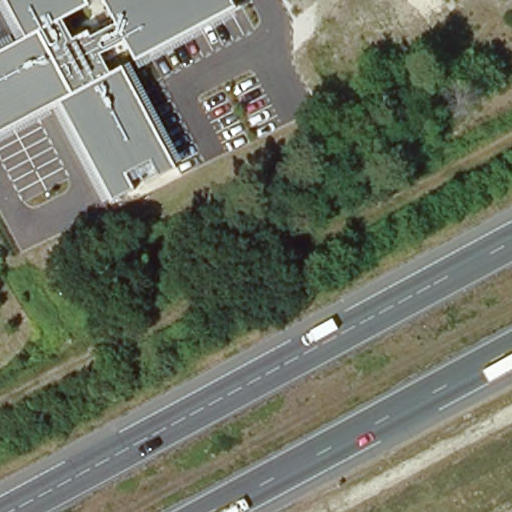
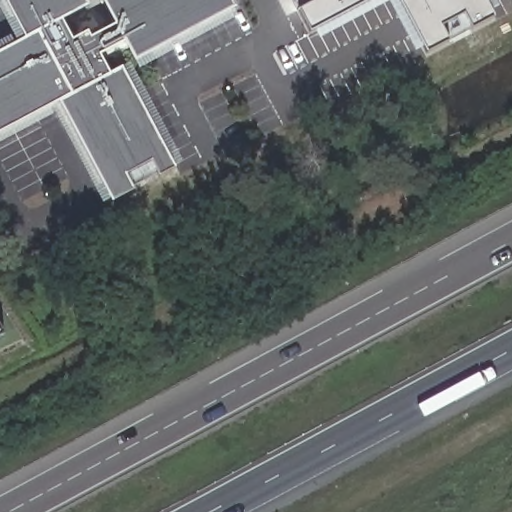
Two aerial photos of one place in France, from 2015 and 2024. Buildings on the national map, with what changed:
unchanged [(0,149),(0,42),(13,35),(0,11),(0,0),(231,0),(239,15),(136,75),(183,165),(104,208),(54,120),(0,149)]
new [(373,0),(305,37),(284,0),(373,0)]
new [(389,0),(486,0),(499,20),(418,63),(389,0)]

